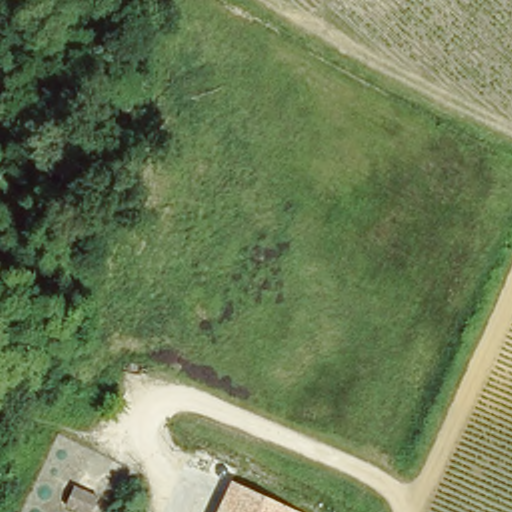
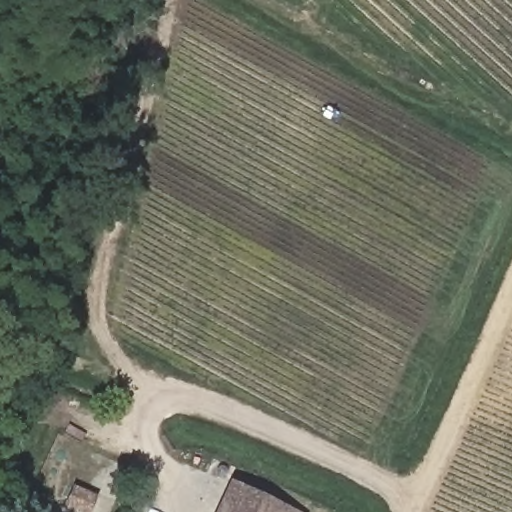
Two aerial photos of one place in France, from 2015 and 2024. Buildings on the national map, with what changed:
unchanged [(297,512),(216,512),(231,480),(297,512)]
unchanged [(81,512),(65,505),(74,484),(101,496),(95,512),(81,512)]

